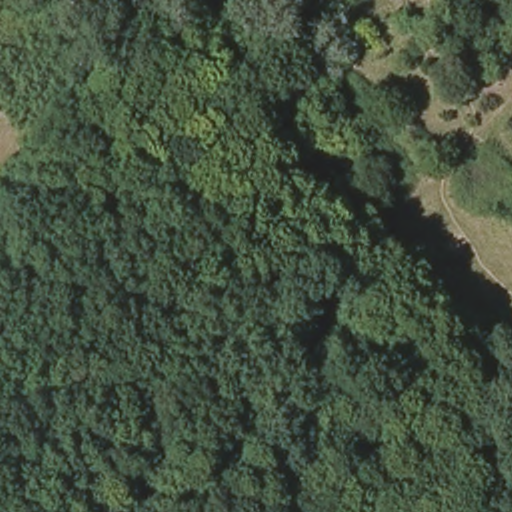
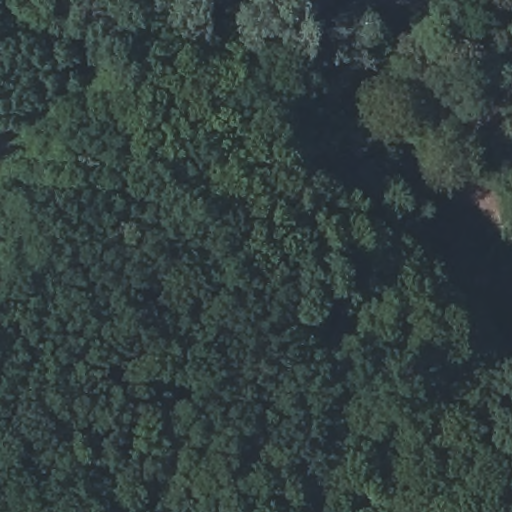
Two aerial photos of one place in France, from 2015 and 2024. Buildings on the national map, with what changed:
[]

